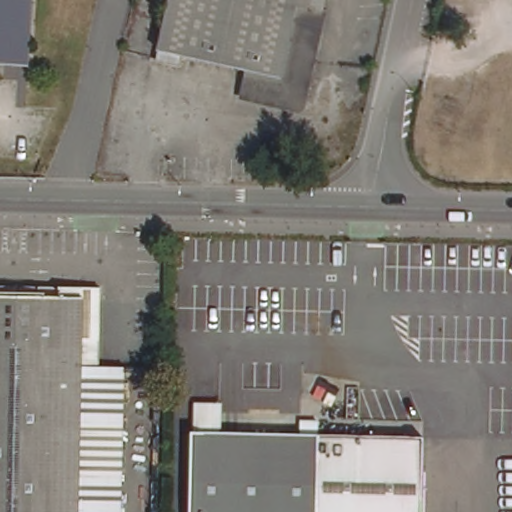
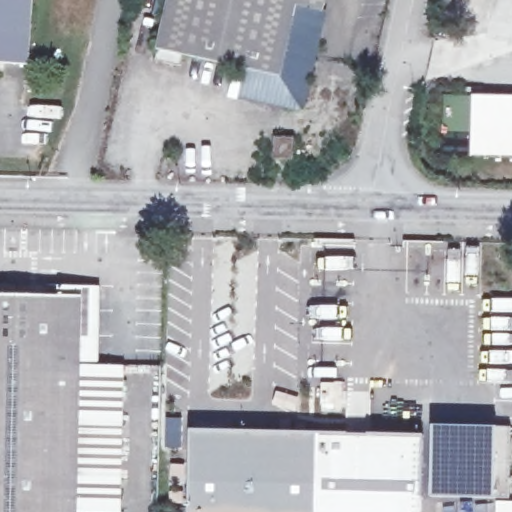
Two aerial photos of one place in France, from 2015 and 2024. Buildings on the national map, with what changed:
unchanged [(27,64),(0,62),(0,0),(31,0),(27,64)]
unchanged [(299,104),(240,90),(246,64),(180,49),(177,60),(152,55),(166,0),(324,0),(299,104)]
new [(471,93),(512,93),(512,157),(470,157),(471,93)]
unchanged [(286,138),(285,156),(265,155),(266,137),(286,138)]
unchanged [(95,291),(94,367),(75,367),(75,512),(0,512),(0,290),(54,290),(95,291)]
unchanged [(94,367),(122,368),(116,512),(75,512),(75,367),(94,367)]
unchanged [(315,419),(317,431),(419,434),(417,512),(186,512),(187,505),(188,428),(297,431),(297,418),(315,419)]
new [(429,423),(495,425),(510,425),(509,470),(505,470),(504,483),(499,483),(497,495),(497,499),(512,500),(512,512),(472,512),(472,499),(428,498),(429,423)]

